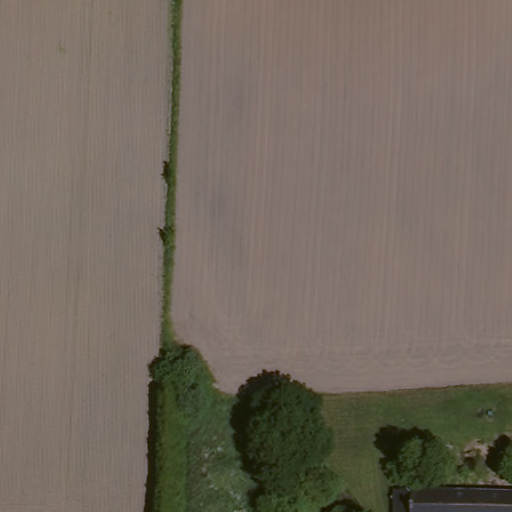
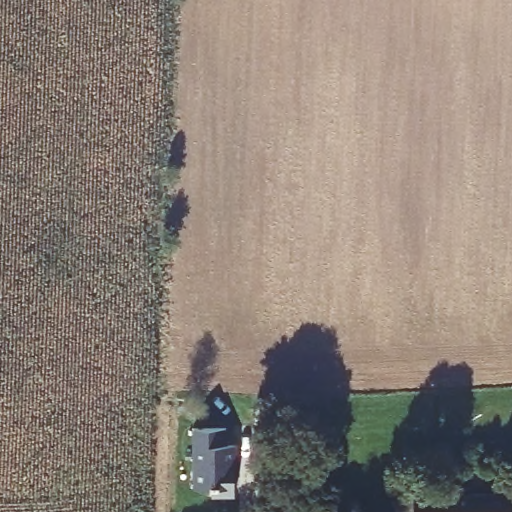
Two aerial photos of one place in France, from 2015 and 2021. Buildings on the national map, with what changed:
new [(227,429),(227,445),(235,446),(235,496),(211,497),(211,489),(194,489),(193,430),(227,429)]
unchanged [(512,499),(512,512),(398,512),(398,496),(512,499)]

